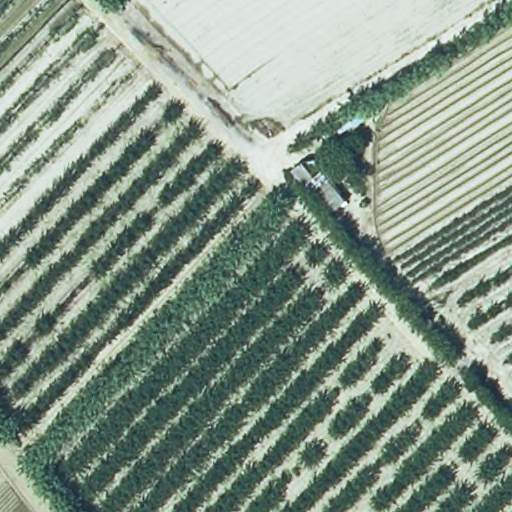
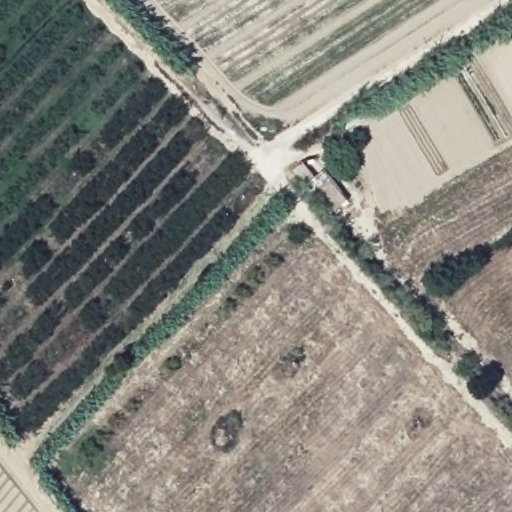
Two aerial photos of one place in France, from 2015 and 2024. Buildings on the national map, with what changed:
unchanged [(361,104),(375,128),(345,144),(332,124),(361,104)]
unchanged [(311,155),(347,200),(325,216),(289,171),(311,155)]

